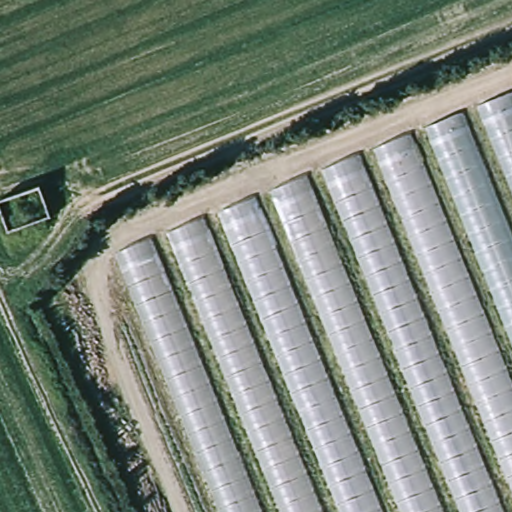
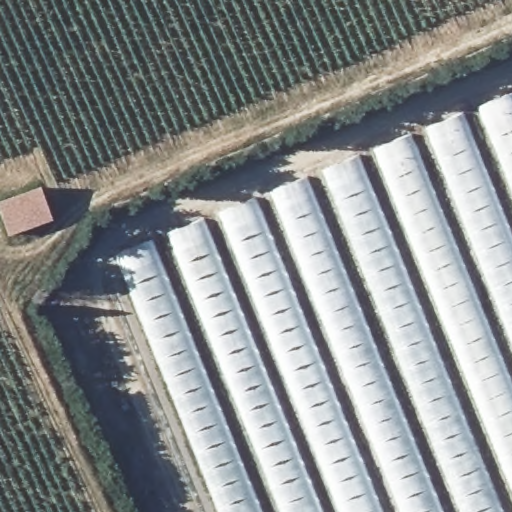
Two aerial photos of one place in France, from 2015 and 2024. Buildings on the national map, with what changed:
unchanged [(512,95),(512,512),(221,512),(118,256),(512,95)]
new [(40,188),(52,220),(8,236),(0,212),(0,202),(40,188)]

